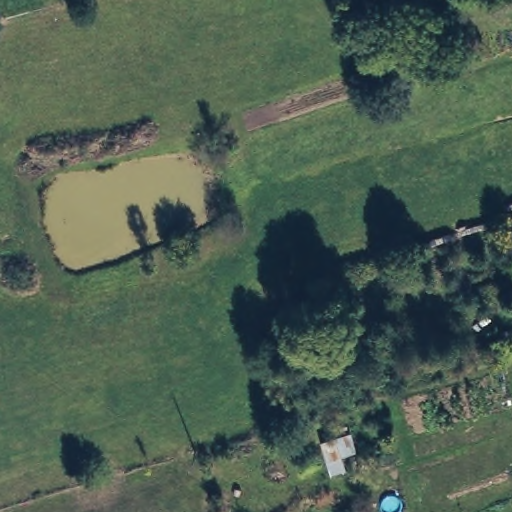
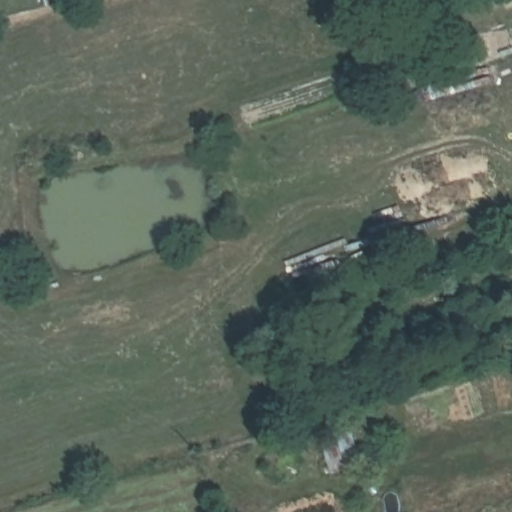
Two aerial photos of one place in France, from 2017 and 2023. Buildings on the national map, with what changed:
unchanged [(321,439),(352,429),(356,449),(342,453),(346,468),(330,473),(321,439)]

